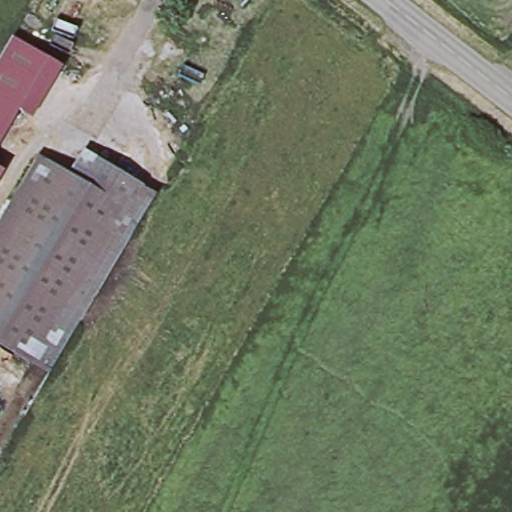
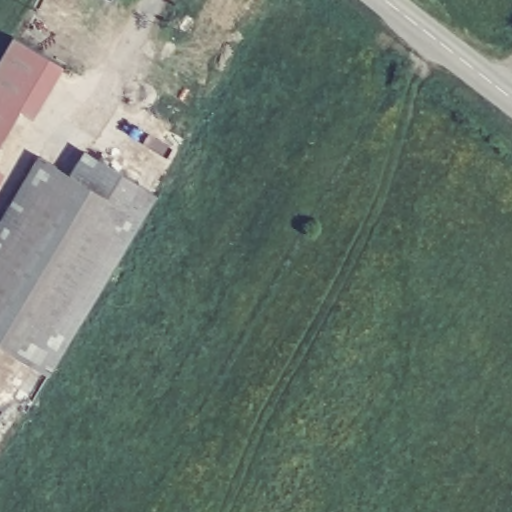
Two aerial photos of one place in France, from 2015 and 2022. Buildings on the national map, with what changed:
unchanged [(68,60),(35,117),(20,108),(0,96),(0,61),(18,31),(68,60)]
unchanged [(20,108),(0,143),(0,96),(20,108)]
unchanged [(70,175),(85,152),(156,195),(79,323),(49,373),(0,344),(0,222),(39,156),(70,175)]

